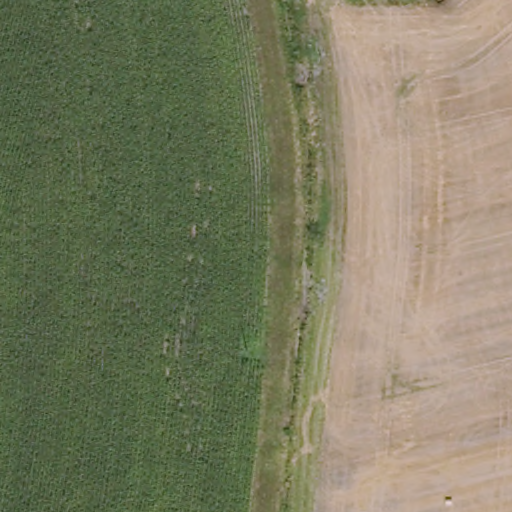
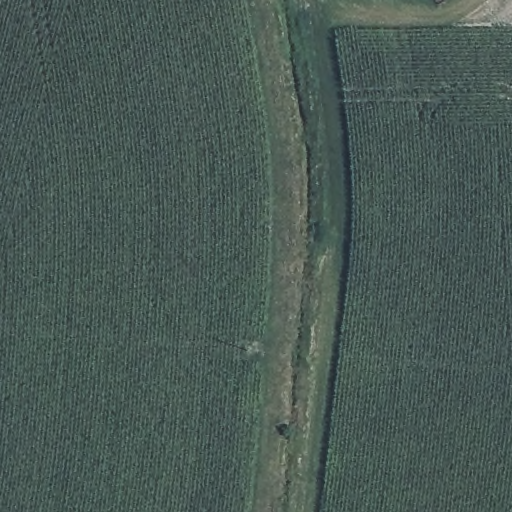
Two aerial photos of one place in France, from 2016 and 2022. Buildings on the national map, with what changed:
[]

